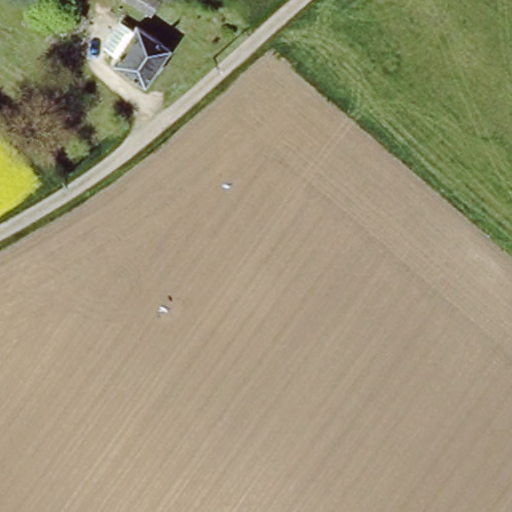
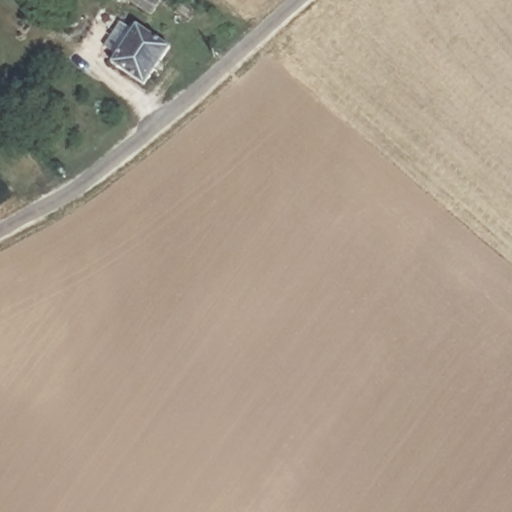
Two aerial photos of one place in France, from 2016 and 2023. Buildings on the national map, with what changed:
unchanged [(144,6),(136,0),(155,0),(149,9),(144,6)]
unchanged [(135,28),(167,51),(142,86),(110,63),(135,28)]

